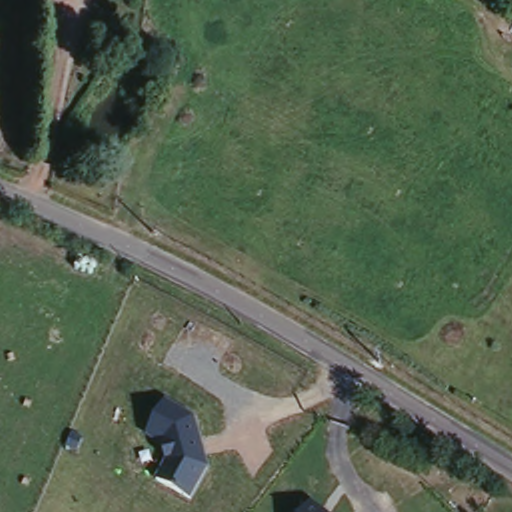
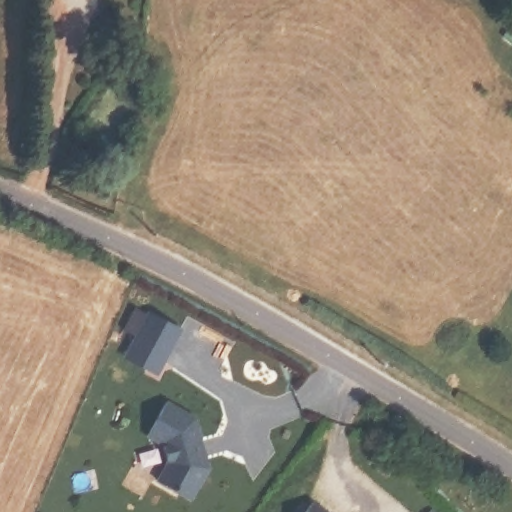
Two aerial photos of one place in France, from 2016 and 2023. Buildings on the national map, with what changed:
new [(149,315),(179,332),(156,379),(124,364),(149,315)]
unchanged [(195,413),(210,466),(192,503),(155,482),(166,460),(161,442),(146,434),(166,397),(195,413)]
unchanged [(331,512),(302,512),(312,498),(331,512)]

